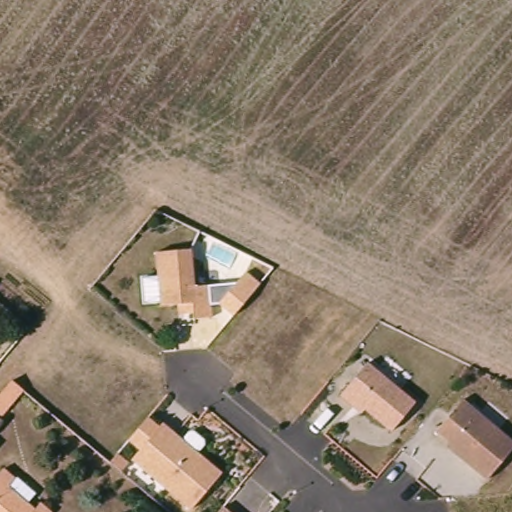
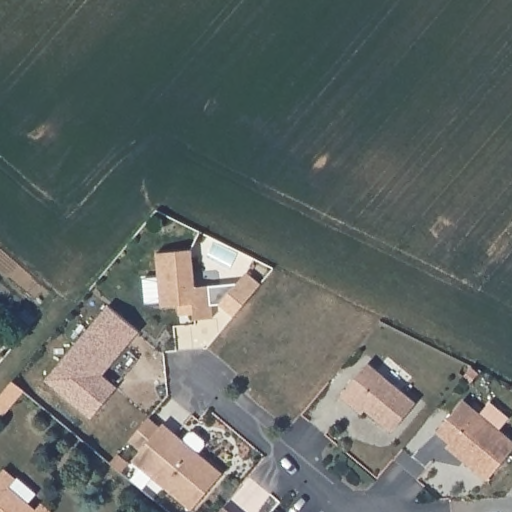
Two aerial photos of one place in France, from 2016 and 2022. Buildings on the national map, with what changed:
unchanged [(176,305),(158,306),(154,252),(189,250),(192,287),(207,286),(210,317),(192,319),(191,313),(177,315),(176,305)]
new [(106,305),(137,330),(100,374),(115,387),(89,417),(44,380),(106,305)]
unchanged [(351,407),(337,397),(365,363),(412,403),(388,432),(362,410),(359,414),(351,407)]
new [(11,378),(23,387),(2,413),(0,411),(0,392),(11,378)]
unchanged [(460,400),(512,442),(512,448),(485,480),(461,461),(444,447),(447,443),(434,432),(460,400)]
unchanged [(158,427),(161,422),(175,435),(182,440),(220,472),(190,509),(130,459),(139,449),(127,440),(146,417),(158,427)]
unchanged [(11,482),(7,486),(33,508),(32,512),(0,512),(0,473),(11,482)]
unchanged [(231,512),(219,512),(224,507),(231,512)]

